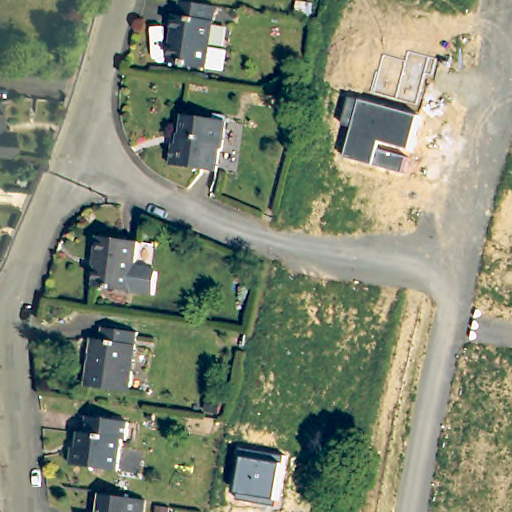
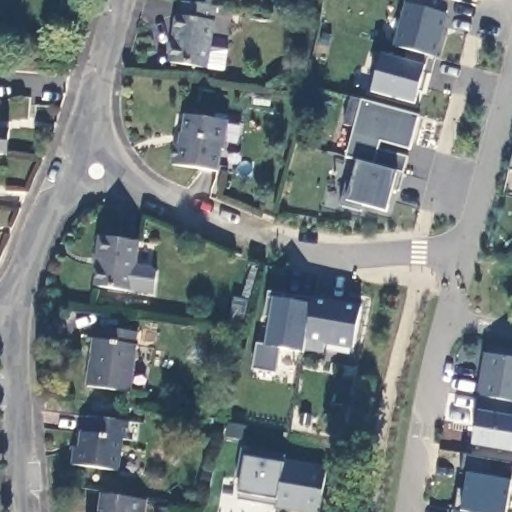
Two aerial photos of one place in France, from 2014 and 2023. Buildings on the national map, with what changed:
unchanged [(205,54),(203,64),(166,58),(174,13),(177,13),(180,0),(196,0),(213,2),(205,54)]
new [(448,14),(437,58),(432,74),(429,74),(424,91),(421,91),(416,104),(373,92),(383,54),(410,61),(415,52),(394,46),(406,3),(407,0),(447,0),(446,14),(448,14)]
unchanged [(11,151),(8,151),(0,150),(0,97),(6,97),(4,125),(13,125),(18,126),(16,151),(11,151)]
unchanged [(362,101),(420,117),(411,149),(381,142),(379,150),(408,157),(404,173),(374,165),(346,158),(354,129),(343,125),(350,97),(362,101)]
unchanged [(184,141),(189,112),(229,118),(224,147),(221,153),(219,167),(176,161),(179,140),(184,141)]
new [(507,169),(512,154),(512,171),(507,169)]
new [(341,206),(343,197),(349,197),(359,161),(374,165),(399,172),(404,173),(400,191),(395,190),(387,211),(367,205),(362,211),(341,206)]
unchanged [(136,240),(133,264),(149,266),(154,270),(150,293),(91,285),(95,265),(92,264),(96,235),(136,240)]
new [(305,350),(303,349),(303,353),(281,348),(277,371),(254,368),(258,343),(266,345),(270,317),(265,317),(270,292),(285,294),(286,299),(297,301),(297,294),(315,297),(305,350)]
new [(353,349),(349,363),(326,359),(327,354),(324,354),(305,350),(315,297),(362,305),(353,349)]
unchanged [(102,337),(103,326),(136,331),(128,391),(87,384),(95,337),(102,337)]
new [(479,410),(477,395),(484,353),(512,358),(512,451),(474,445),(479,410)]
unchanged [(127,422),(124,443),(120,443),(115,470),(71,463),(74,444),(78,444),(81,430),(86,431),(89,415),(127,422)]
unchanged [(286,457),(285,465),(277,499),(277,507),(238,500),(240,493),(246,459),(241,458),(242,449),(286,457)]
new [(458,489),(465,490),(468,476),(460,474),(464,454),(512,463),(512,481),(507,512),(458,512),(453,511),(458,489)]
new [(277,499),(285,465),(286,457),(327,466),(318,512),(302,512),(277,507),(277,499)]
unchanged [(139,512),(97,512),(100,492),(141,498),(139,512)]
new [(453,511),(458,512),(452,512),(453,511)]

